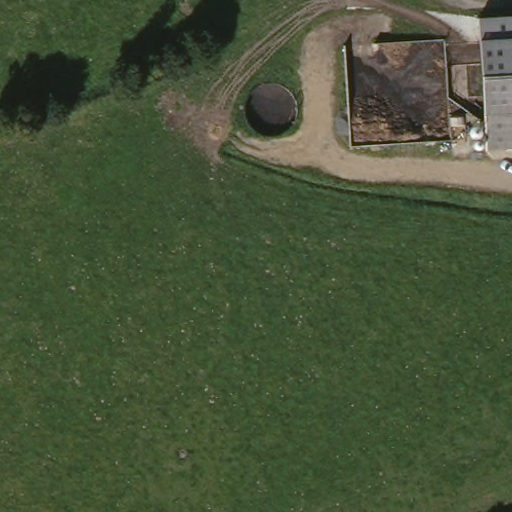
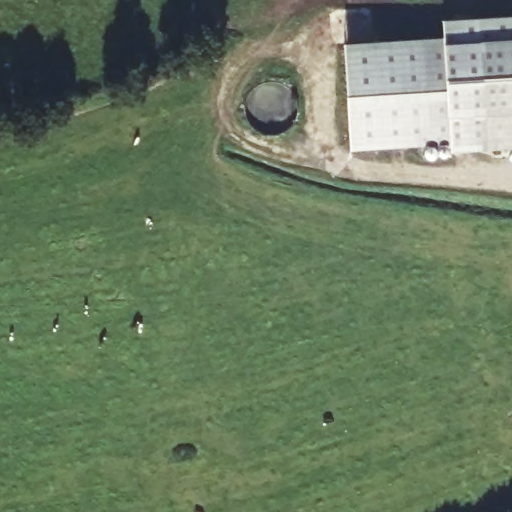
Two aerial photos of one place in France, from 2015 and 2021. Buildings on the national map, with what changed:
new [(451,143),(351,149),(344,42),(444,37),(443,19),(512,16),(512,148),(452,151),(451,143)]
demolished [(512,149),(486,151),(482,17),(512,16),(512,149)]

